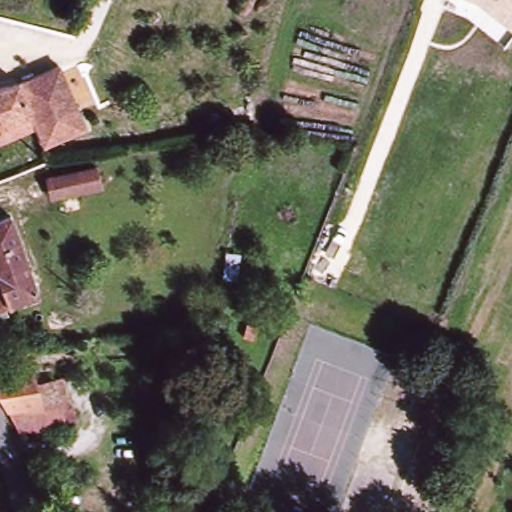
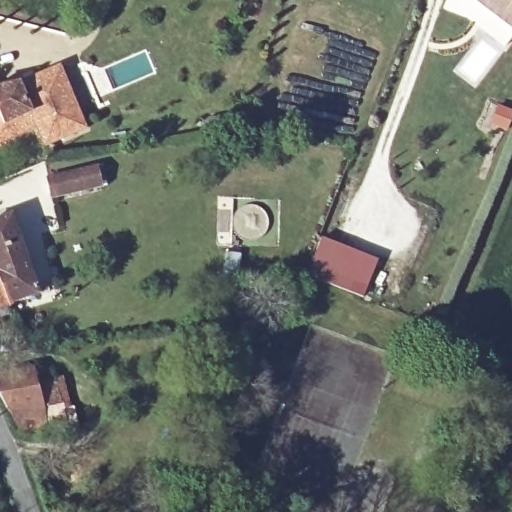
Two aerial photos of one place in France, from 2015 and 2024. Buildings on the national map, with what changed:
unchanged [(512,28),(477,0),(512,0),(512,28)]
unchanged [(46,146),(31,112),(3,125),(0,118),(0,87),(21,82),(60,66),(82,116),(88,129),(48,146),(46,146)]
unchanged [(99,191),(52,199),(48,178),(95,170),(99,191)]
unchanged [(13,219),(20,237),(41,295),(13,306),(0,311),(0,224),(13,219)]
new [(323,238),(380,259),(366,297),(309,275),(323,238)]
unchanged [(0,401),(0,387),(17,381),(15,372),(34,368),(40,392),(57,390),(66,422),(49,422),(54,445),(28,448),(18,421),(11,421),(0,401)]

